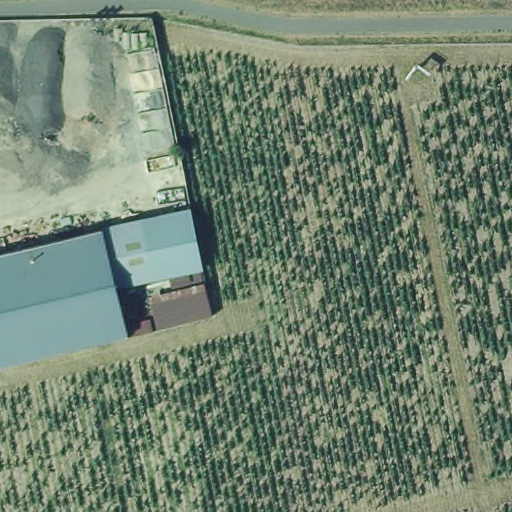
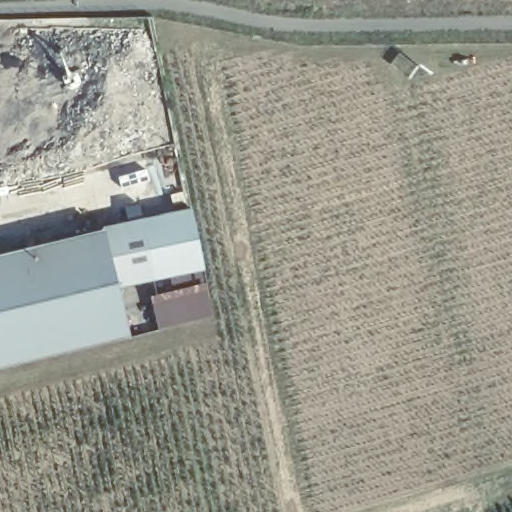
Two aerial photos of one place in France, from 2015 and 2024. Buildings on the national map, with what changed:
unchanged [(164,213),(180,209),(185,232),(192,269),(167,275),(142,281),(132,242),(127,222),(164,213)]
unchanged [(127,222),(132,242),(142,281),(107,289),(97,249),(94,233),(93,230),(127,222)]
unchanged [(94,233),(97,249),(107,289),(120,342),(116,342),(0,370),(0,255),(94,233)]
unchanged [(197,287),(208,316),(174,324),(152,330),(146,300),(172,294),(197,287)]

